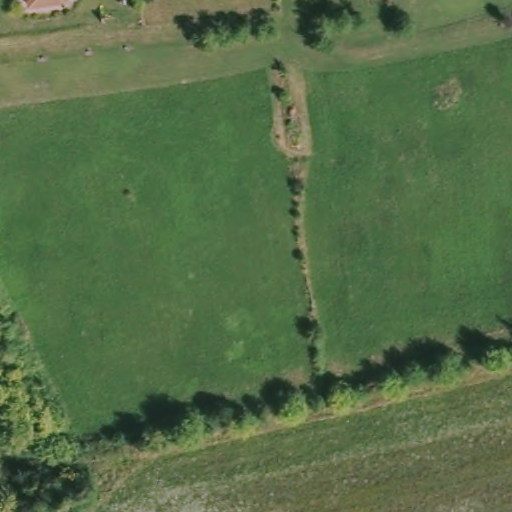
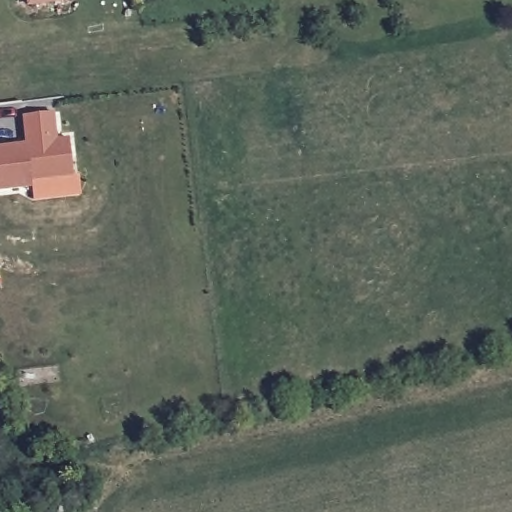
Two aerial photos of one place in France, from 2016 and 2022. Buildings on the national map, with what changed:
new [(0,146),(24,143),(22,116),(54,113),(58,137),(68,137),(73,174),(30,180),(30,185),(0,188),(0,146)]

